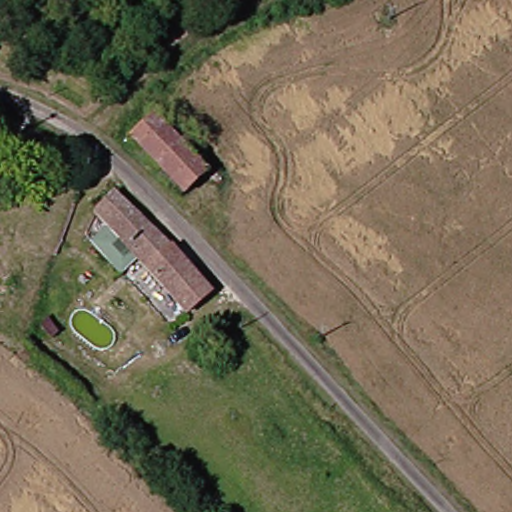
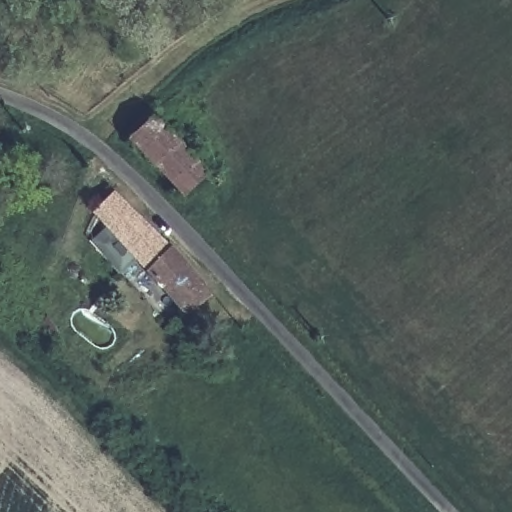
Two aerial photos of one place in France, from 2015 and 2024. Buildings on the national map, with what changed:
unchanged [(197,0),(216,0),(201,12),(197,0)]
unchanged [(128,135),(149,119),(197,172),(178,191),(128,135)]
unchanged [(84,214),(109,189),(200,285),(175,310),(84,214)]

